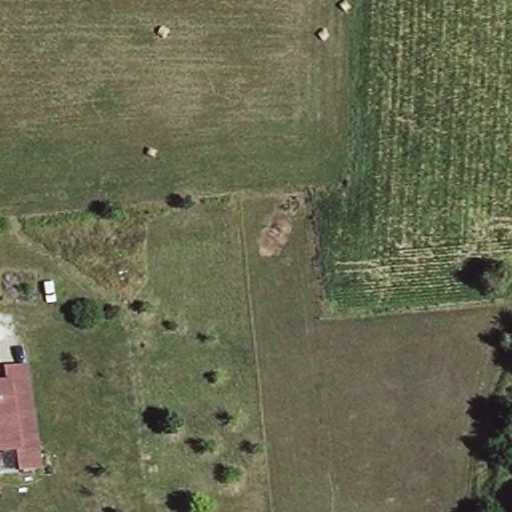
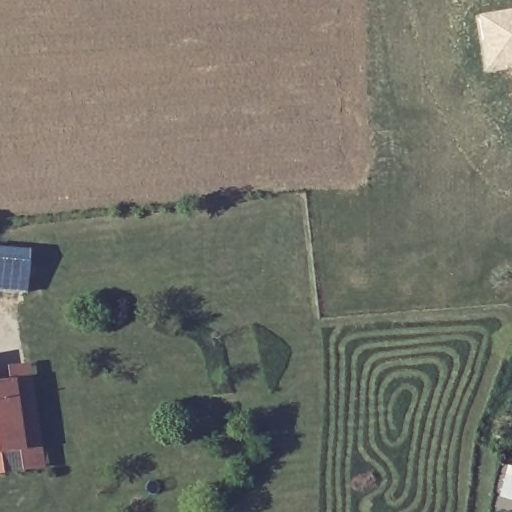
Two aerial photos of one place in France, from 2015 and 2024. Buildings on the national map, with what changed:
new [(512,10),(512,89),(509,70),(482,74),(474,15),(512,10)]
new [(28,293),(0,292),(0,246),(30,250),(28,293)]
unchanged [(6,369),(30,367),(46,470),(23,475),(20,455),(0,456),(0,385),(10,384),(6,369)]
unchanged [(0,474),(0,461),(1,473),(0,474)]

